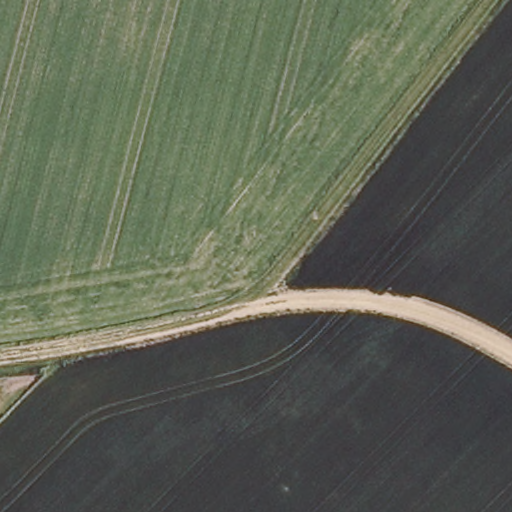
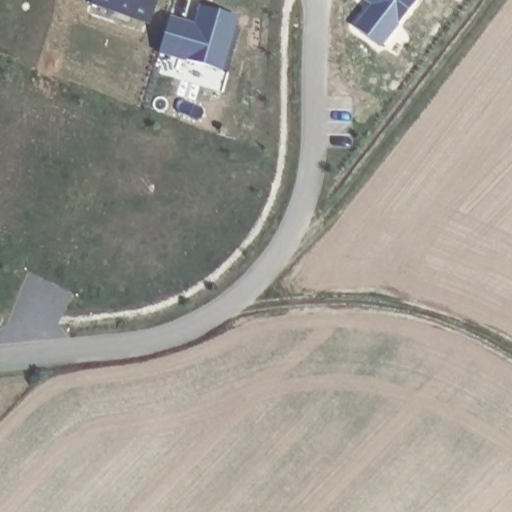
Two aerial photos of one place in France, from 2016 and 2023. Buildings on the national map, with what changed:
new [(148,24),(88,3),(90,0),(156,0),(148,24)]
new [(200,7),(238,18),(223,72),(158,53),(169,16),(194,24),(200,7)]

